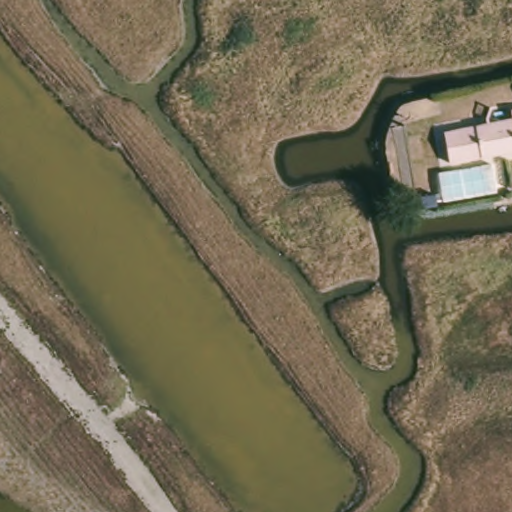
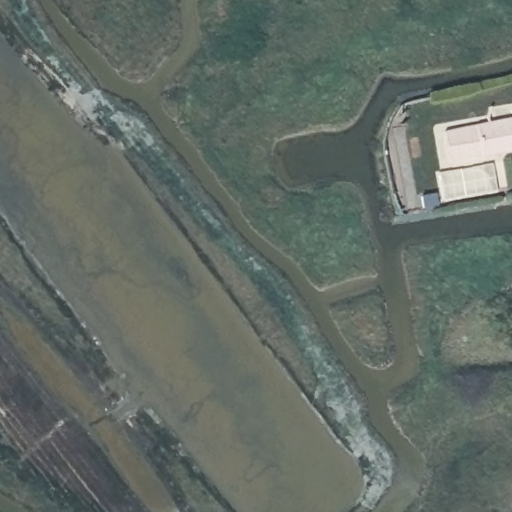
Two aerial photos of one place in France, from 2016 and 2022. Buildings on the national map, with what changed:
unchanged [(505,112),(512,111),(512,154),(445,166),(441,136),(506,124),(505,112)]

